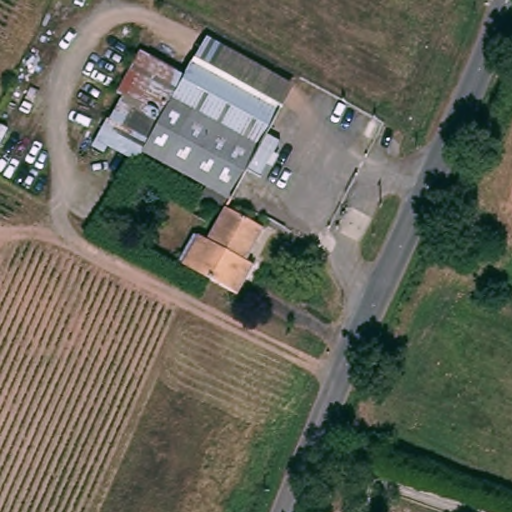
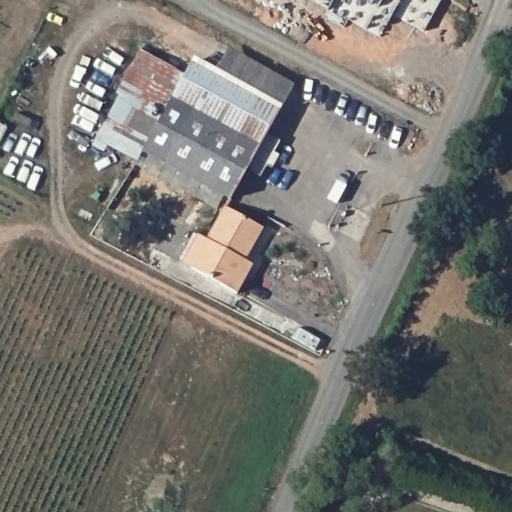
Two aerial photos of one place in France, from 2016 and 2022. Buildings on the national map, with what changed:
unchanged [(140,155),(144,135),(120,119),(150,54),(184,66),(205,30),(277,68),(262,91),(284,106),(269,137),(301,152),(288,185),(249,168),(230,199),(140,155)]
unchanged [(235,291),(192,267),(219,217),(225,205),(260,225),(254,237),(239,265),(247,270),(235,291)]

